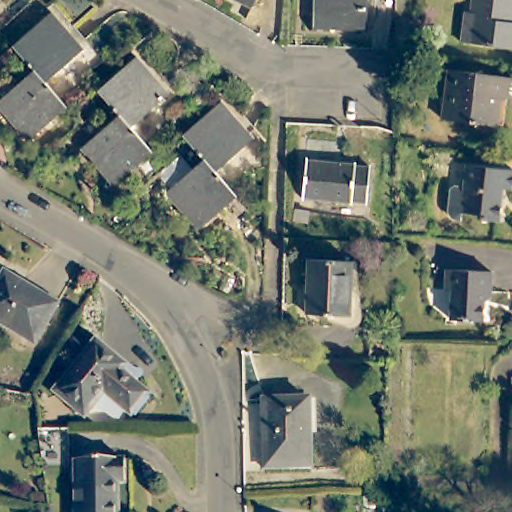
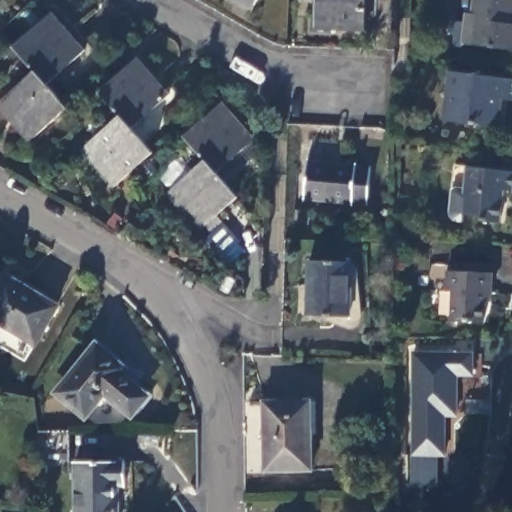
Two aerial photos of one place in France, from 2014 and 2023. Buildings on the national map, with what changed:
unchanged [(245,0),(260,0),(257,6),(245,0)]
unchanged [(328,24),(328,29),(309,28),(310,15),(313,15),(313,0),(365,0),(365,25),(328,24)]
unchanged [(478,0),(512,0),(512,48),(466,43),(470,12),(476,13),(478,0)]
unchanged [(13,44),(52,10),(83,49),(45,81),(33,68),(13,44)]
unchanged [(97,93),(138,59),(169,98),(131,130),(119,117),(97,93)]
unchanged [(26,138),(0,106),(0,96),(33,68),(45,81),(65,104),(26,138)]
unchanged [(501,98),(497,127),(442,120),(449,70),(512,78),(512,99),(501,98)]
unchanged [(183,137),(220,104),(251,140),(214,174),(204,162),(183,137)]
unchanged [(152,154),(113,187),(80,150),(119,117),(131,130),(152,154)]
unchanged [(197,233),(165,195),(204,162),(214,174),(236,200),(197,233)]
unchanged [(309,203),(309,164),(375,165),(374,204),(309,203)]
unchanged [(456,164),(512,172),(512,192),(505,190),(501,223),(482,220),(478,215),(450,212),(456,164)]
unchanged [(313,262),(356,264),(354,318),(312,317),(313,262)]
unchanged [(457,291),(448,291),(449,272),(495,274),(495,293),(488,293),(487,322),(456,321),(457,291)]
unchanged [(55,303),(34,342),(0,322),(0,279),(4,273),(55,303)]
unchanged [(93,345),(111,361),(107,367),(140,394),(124,414),(97,392),(78,413),(51,391),(93,345)]
new [(476,377),(456,377),(456,417),(445,417),(445,458),(438,457),(439,487),(426,488),(427,504),(405,504),(407,455),(411,455),(412,352),(474,353),(476,377)]
unchanged [(310,470),(263,471),(263,431),(268,431),(268,403),(310,402),(310,431),(310,470)]
unchanged [(125,486),(114,486),(114,512),(75,512),(75,462),(125,462),(125,486)]

